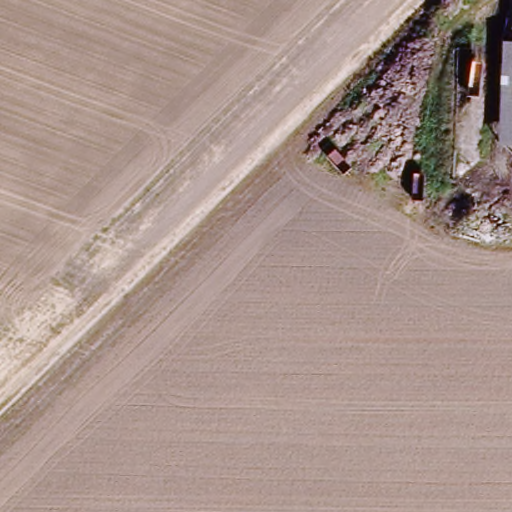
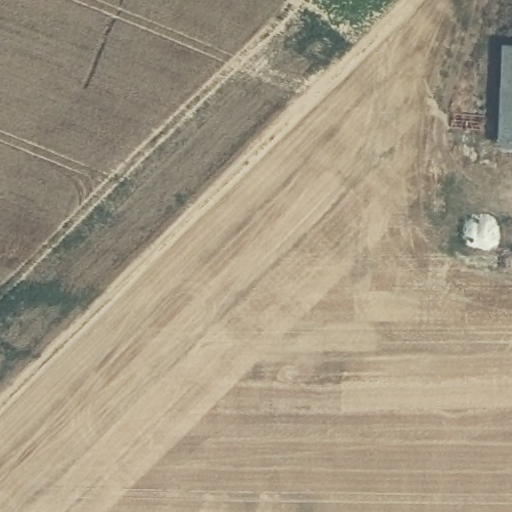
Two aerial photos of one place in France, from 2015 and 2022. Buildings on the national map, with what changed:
unchanged [(512,92),(496,92),(497,41),(512,42),(512,92)]
unchanged [(512,146),(497,146),(496,92),(512,92),(512,146)]

